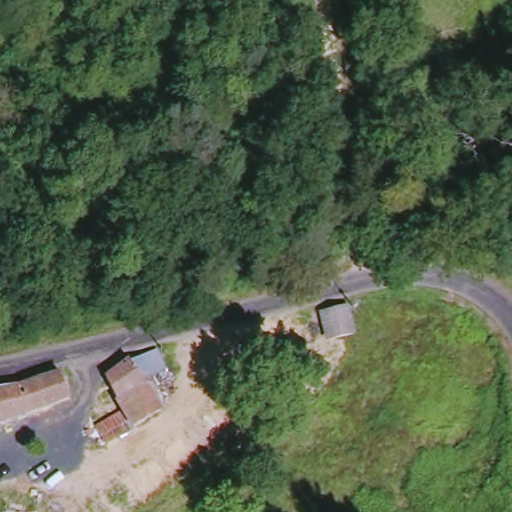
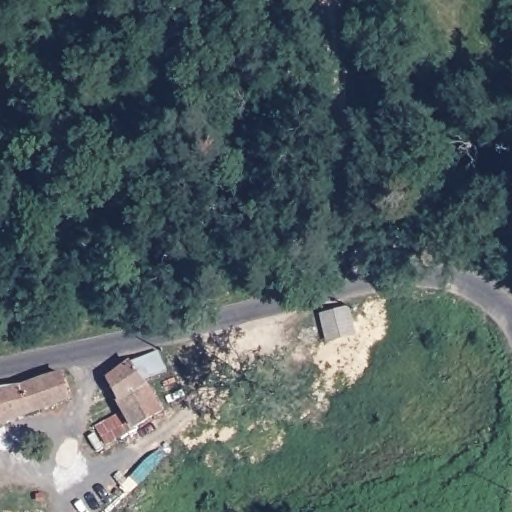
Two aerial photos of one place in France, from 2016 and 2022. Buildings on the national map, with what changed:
unchanged [(352,309),(356,335),(328,340),(324,314),(352,309)]
unchanged [(104,448),(95,432),(123,415),(102,378),(128,362),(153,347),(165,367),(140,383),(159,413),(104,448)]
unchanged [(68,406),(25,415),(0,429),(0,398),(17,396),(55,383),(62,382),(68,406)]

